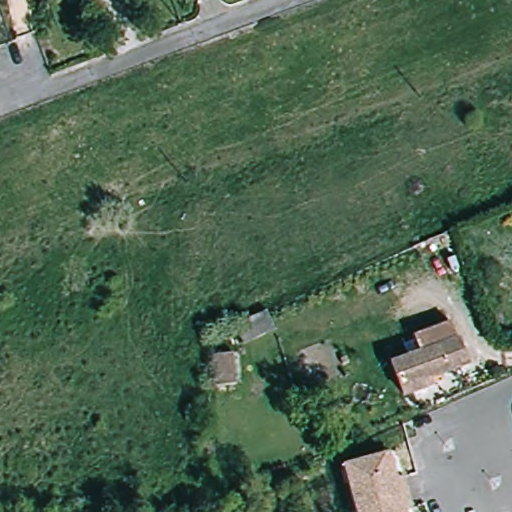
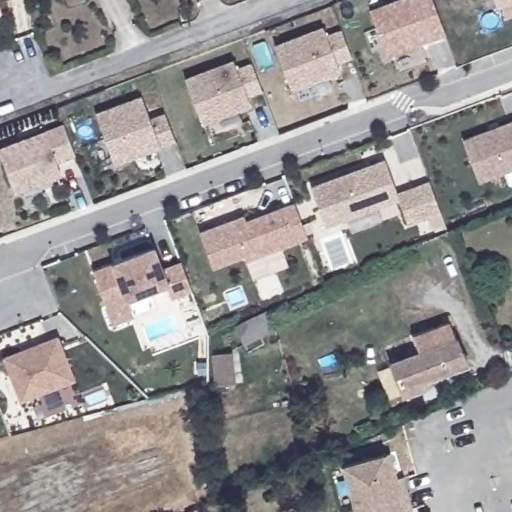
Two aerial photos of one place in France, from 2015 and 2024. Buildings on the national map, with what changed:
new [(432,0),(445,34),(386,55),(370,10),(397,0),(432,0)]
new [(323,28),(326,35),(341,29),(351,57),(336,63),(339,71),(290,89),(274,45),(323,28)]
new [(233,60),(236,68),(251,63),(262,90),(247,96),(250,104),(201,123),(185,79),(233,60)]
new [(142,95),(150,118),(164,113),(175,140),(115,163),(96,113),(142,95)]
new [(512,122),(512,169),(478,182),(463,141),(512,122)]
new [(75,154),(56,161),(61,175),(14,193),(0,154),(0,148),(64,124),(75,154)]
new [(385,161),(397,195),(429,183),(441,214),(408,225),(398,200),(325,228),(310,189),(385,161)]
new [(243,217),(245,222),(294,204),(307,237),(246,259),(244,255),(213,267),(200,233),(232,221),(243,217)]
new [(113,325),(107,309),(93,273),(114,265),(122,262),(154,249),(161,269),(181,262),(192,292),(171,299),(166,286),(126,302),(132,318),(113,325)]
unchanged [(253,344),(245,327),(276,312),(285,330),(253,344)]
unchanged [(426,381),(429,389),(407,396),(395,364),(424,354),(417,335),(454,322),(461,339),(472,364),(426,381)]
new [(17,354),(38,346),(37,343),(54,336),(71,379),(17,402),(0,360),(0,357),(16,351),(17,354)]
unchanged [(235,384),(215,387),(211,355),(232,353),(235,384)]
unchanged [(354,508),(343,465),(386,454),(391,453),(398,479),(404,477),(408,493),(413,510),(407,512),(355,512),(354,508)]

